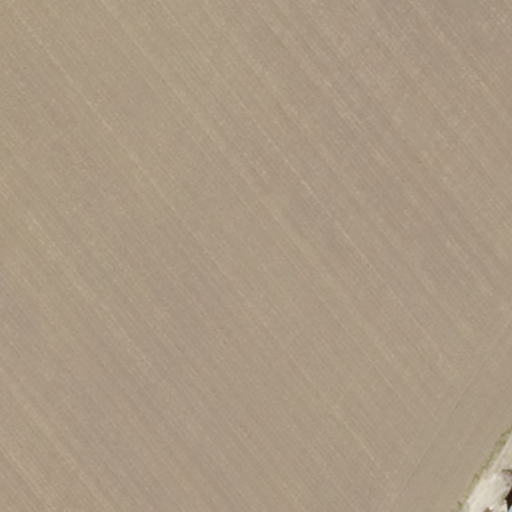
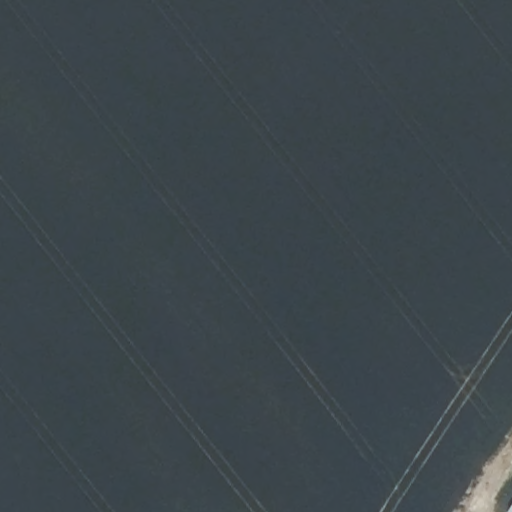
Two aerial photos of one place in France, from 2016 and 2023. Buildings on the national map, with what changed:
unchanged [(508,512),(506,510),(512,501),(512,512),(508,512)]

